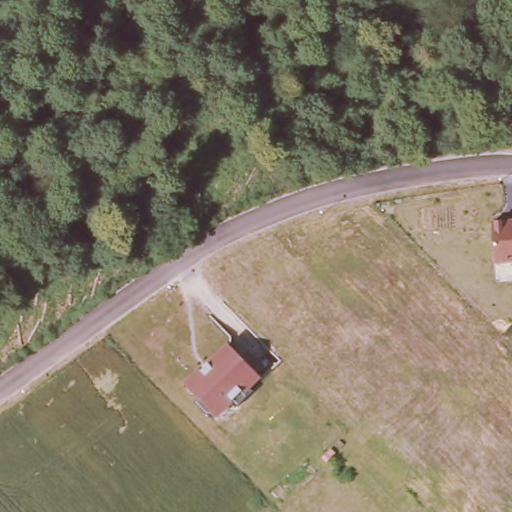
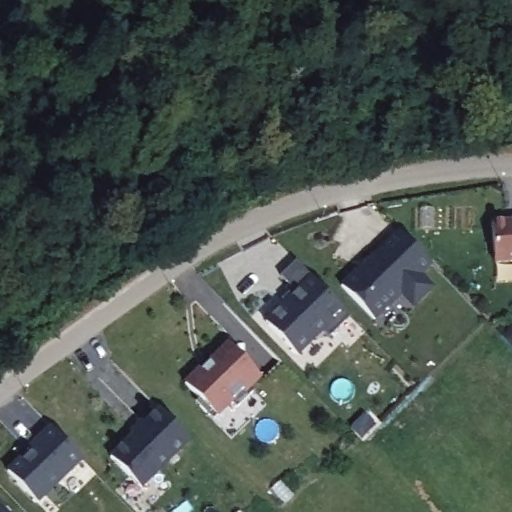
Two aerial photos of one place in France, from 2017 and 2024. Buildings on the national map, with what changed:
unchanged [(493,219),(512,217),(512,259),(496,260),(493,219)]
new [(397,226),(429,260),(418,271),(431,283),(412,301),(398,290),(371,315),(339,282),(397,226)]
new [(346,310),(324,330),(318,323),(292,347),(261,316),(291,286),(275,269),(291,255),(346,310)]
unchanged [(240,408),(234,402),(216,419),(199,401),(202,398),(188,384),(203,369),(205,370),(233,344),(264,376),(253,386),(258,391),(240,408)]
new [(163,409),(193,439),(144,488),(114,457),(163,409)]
new [(38,505),(6,472),(20,459),(28,466),(35,459),(25,449),(48,427),(83,462),(38,505)]
new [(7,512),(0,512),(0,504),(7,512)]

